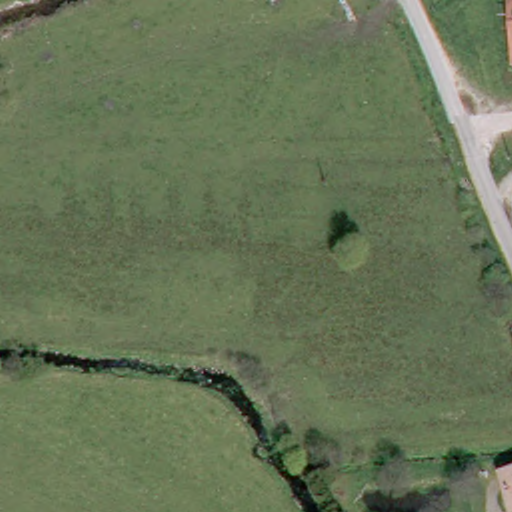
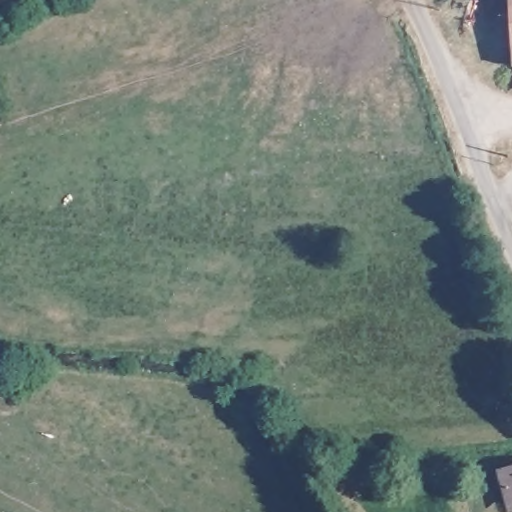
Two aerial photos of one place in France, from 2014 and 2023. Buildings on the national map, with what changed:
unchanged [(509,0),(512,0),(512,64),(509,0)]
unchanged [(504,475),(512,473),(512,507),(504,475)]

